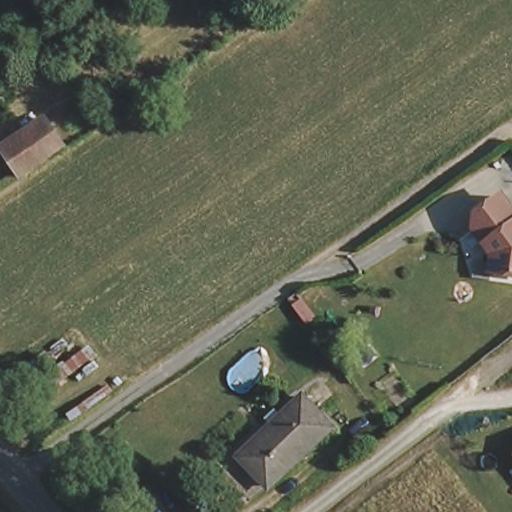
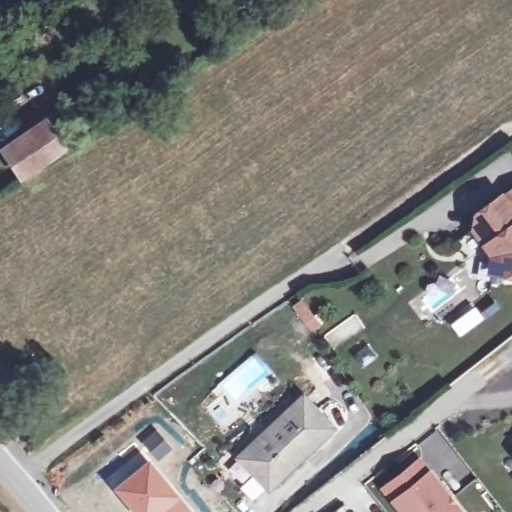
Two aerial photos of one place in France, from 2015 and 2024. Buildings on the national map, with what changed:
unchanged [(1,155),(52,118),(73,146),(21,183),(1,155)]
new [(489,257),(482,245),(471,230),(472,213),(477,209),(487,202),(502,192),(504,195),(512,189),(512,206),(506,198),(482,215),(479,229),(499,255),(497,271),(488,269),(489,257)]
unchanged [(506,198),(512,206),(512,273),(497,271),(499,255),(479,229),(482,215),(506,198)]
unchanged [(241,448),(310,398),(334,429),(264,479),(241,448)]
new [(153,424),(173,447),(158,461),(139,439),(153,424)]
new [(152,455),(153,457),(151,459),(181,495),(160,512),(133,512),(111,486),(152,455)]
new [(419,457),(429,469),(463,512),(398,512),(389,500),(380,489),(419,457)]
new [(181,495),(195,512),(160,512),(181,495)]

